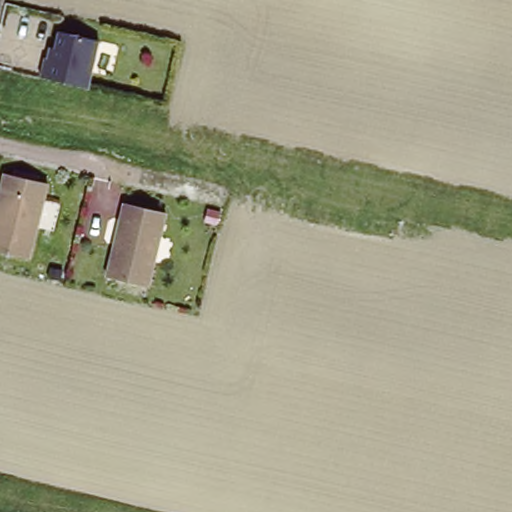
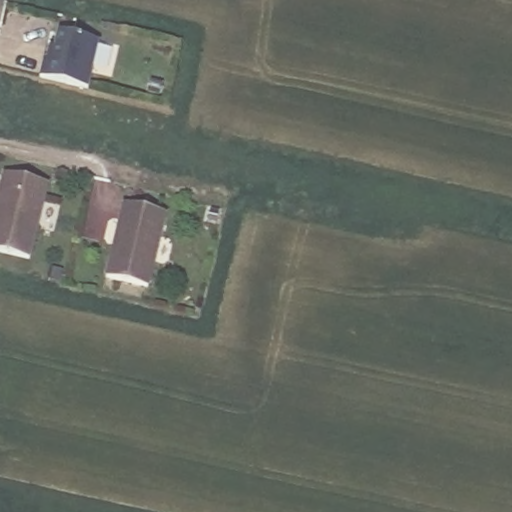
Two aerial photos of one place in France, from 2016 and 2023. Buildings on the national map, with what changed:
unchanged [(99,39),(89,87),(50,77),(40,75),(43,57),(46,58),(49,46),(55,47),(58,30),(99,39)]
unchanged [(25,263),(0,258),(0,179),(42,188),(25,263)]
unchanged [(143,292),(102,283),(109,250),(112,250),(117,226),(115,225),(118,208),(160,218),(143,292)]

